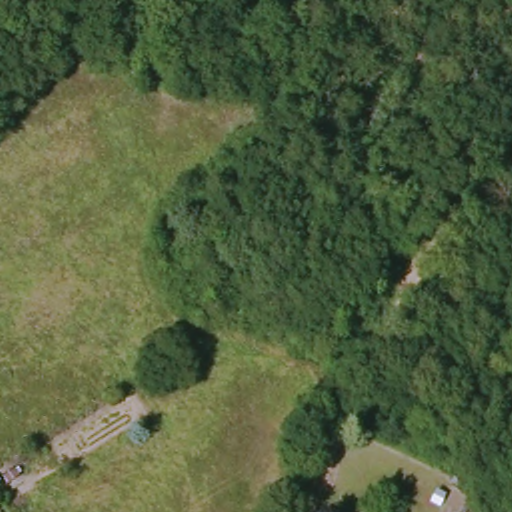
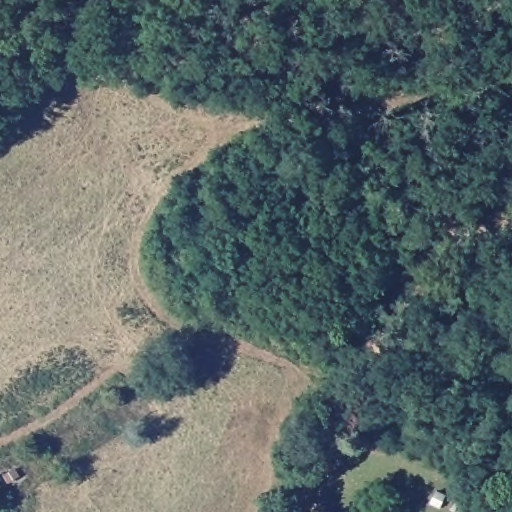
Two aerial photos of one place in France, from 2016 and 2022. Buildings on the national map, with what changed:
unchanged [(0,491),(0,482),(5,489),(0,491)]

